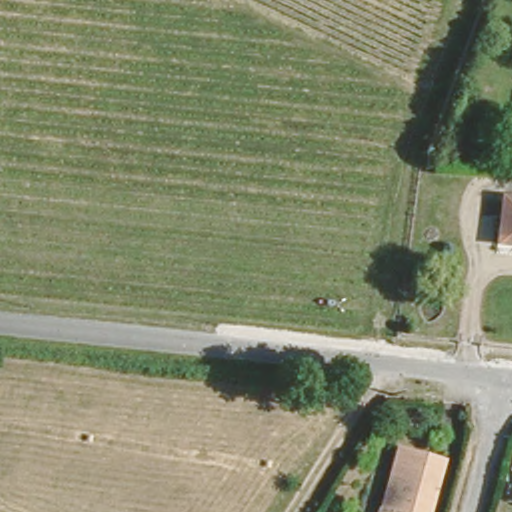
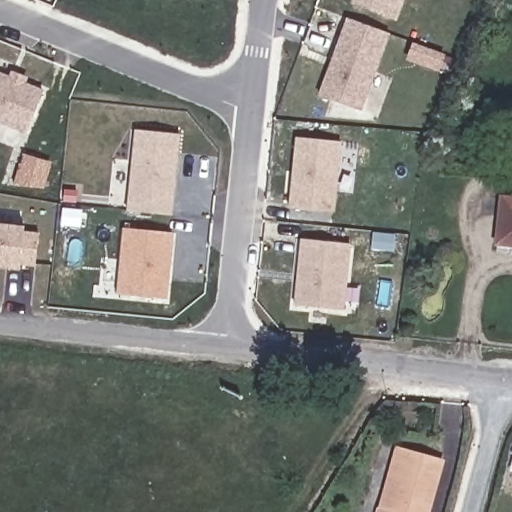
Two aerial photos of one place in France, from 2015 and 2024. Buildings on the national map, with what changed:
new [(353,3),(354,0),(403,0),(395,19),(353,3)]
new [(349,19),(389,34),(360,111),(320,96),(349,19)]
new [(43,92),(27,131),(0,121),(0,74),(43,92)]
new [(135,130),(178,135),(170,215),(127,211),(135,130)]
new [(335,212),(289,208),(296,136),(342,141),(335,212)]
unchanged [(501,199),(512,200),(512,244),(496,242),(501,199)]
new [(25,227),(24,232),(39,234),(36,266),(21,264),(20,269),(0,267),(0,224),(25,227)]
new [(170,233),(163,300),(116,295),(123,229),(170,233)]
new [(300,240),(349,243),(343,312),(296,307),(300,240)]
unchanged [(378,507),(388,476),(395,448),(443,460),(430,512),(377,512),(378,507)]

